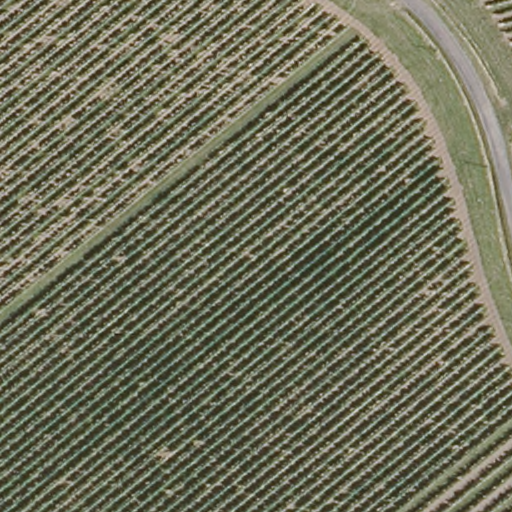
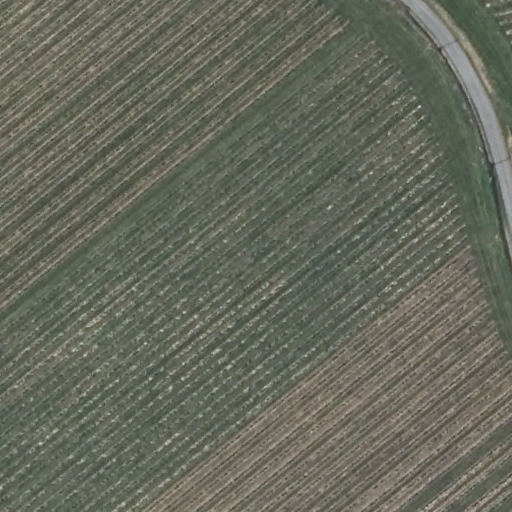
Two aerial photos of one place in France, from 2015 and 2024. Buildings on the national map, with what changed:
[]

